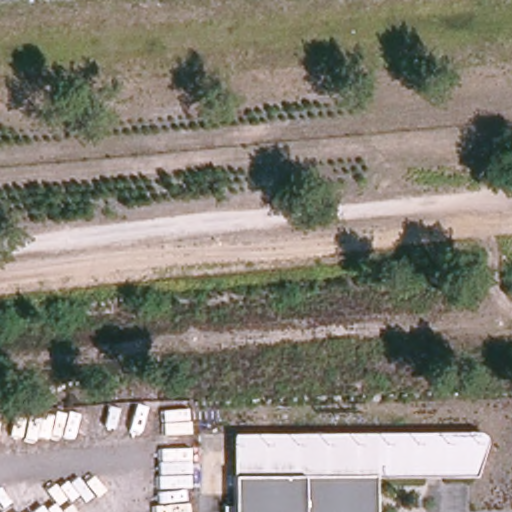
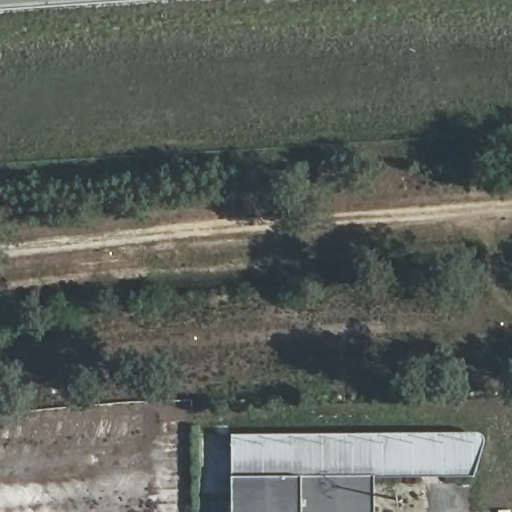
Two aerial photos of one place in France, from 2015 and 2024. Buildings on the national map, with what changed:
unchanged [(481,428),(481,447),(465,475),(370,475),(370,512),(227,512),(225,432),(481,428)]

